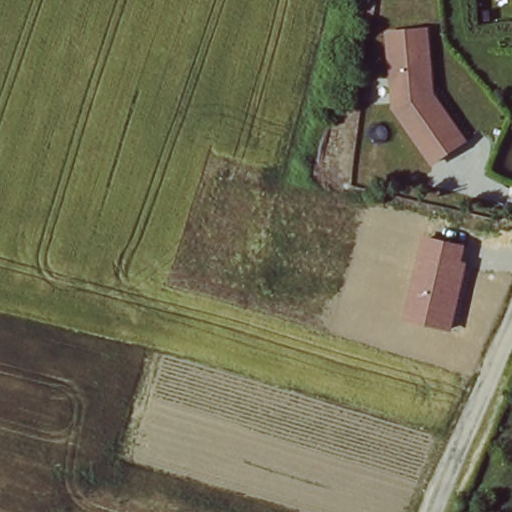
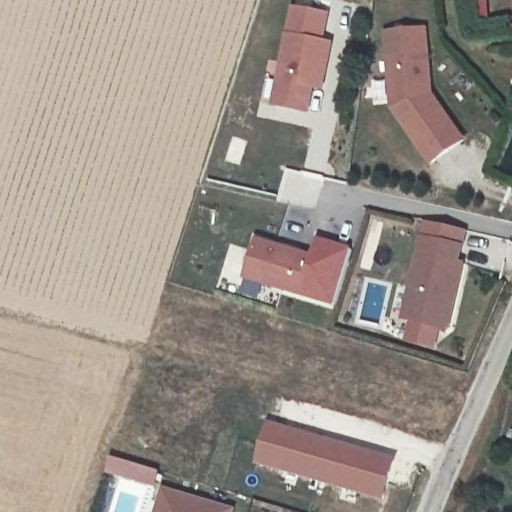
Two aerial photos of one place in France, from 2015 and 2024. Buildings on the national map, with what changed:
new [(274,106),(293,8),(325,14),(320,41),(330,43),(323,75),(312,73),(305,111),(274,106)]
unchanged [(436,96),(465,141),(429,166),(392,107),(385,31),(428,29),(436,96)]
new [(287,169),(323,178),(315,208),(279,201),(287,169)]
unchanged [(451,332),(403,323),(423,237),(464,245),(461,262),(466,263),(451,332)]
new [(302,296),(244,279),(256,238),(316,256),(302,296)]
new [(269,422),(335,439),(395,457),(385,501),(256,466),(269,422)]
new [(162,487),(236,509),(235,512),(155,512),(162,487)]

